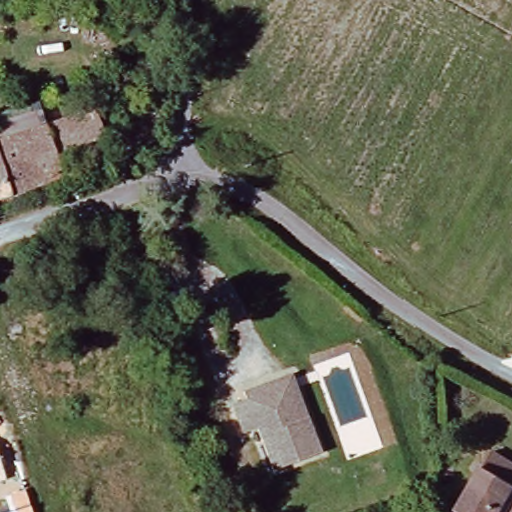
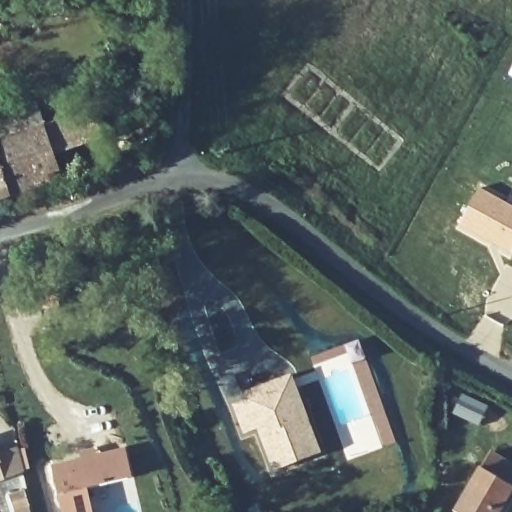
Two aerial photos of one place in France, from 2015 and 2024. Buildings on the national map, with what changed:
unchanged [(166,116),(116,130),(122,153),(0,195),(0,139),(159,91),(166,116)]
new [(478,185),(512,204),(512,250),(511,252),(458,222),(478,185)]
unchanged [(244,388),(293,374),(305,420),(314,455),(266,468),(254,424),(240,429),(232,399),(246,394),(244,388)]
new [(126,452),(131,479),(87,488),(92,512),(63,512),(54,465),(126,452)]
unchanged [(447,510),(485,452),(512,469),(512,477),(506,486),(512,489),(512,503),(506,512),(451,512),(447,510)]
unchanged [(0,480),(0,466),(4,479),(0,480)]

